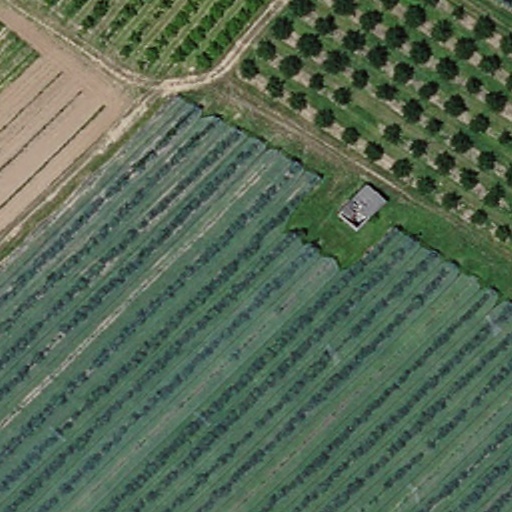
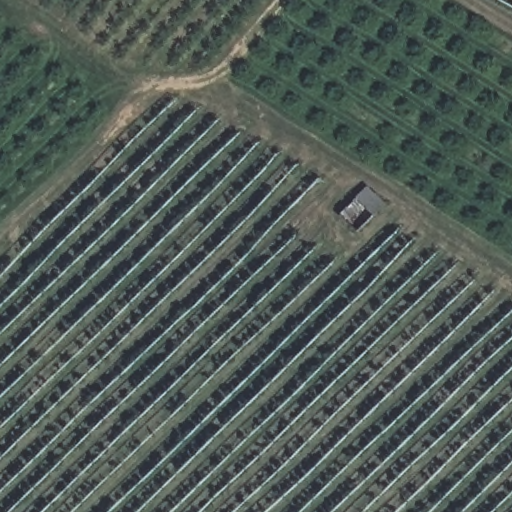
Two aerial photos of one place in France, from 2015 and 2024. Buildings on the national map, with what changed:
unchanged [(340,212),(370,183),(387,201),(357,229),(340,212)]

